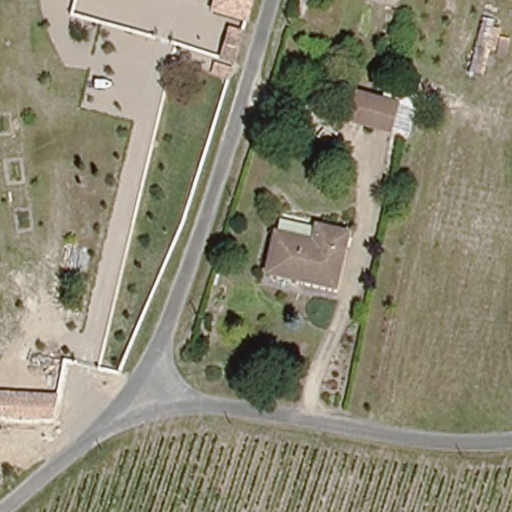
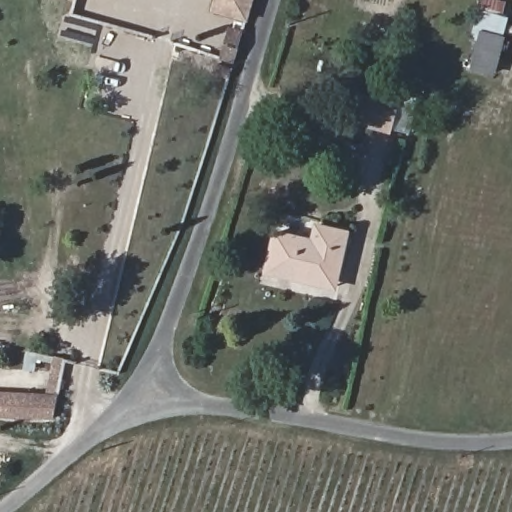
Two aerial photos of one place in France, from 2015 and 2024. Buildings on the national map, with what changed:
unchanged [(247,19),(213,8),(215,0),(253,0),(247,19)]
new [(506,35),(495,76),(470,70),(480,29),(506,35)]
unchanged [(391,133),(350,122),(356,98),(398,109),(391,133)]
unchanged [(305,276),(270,267),(280,227),(316,237),(320,220),(351,228),(338,277),(336,284),(305,276)]
unchanged [(53,419),(0,417),(0,391),(57,393),(53,419)]

